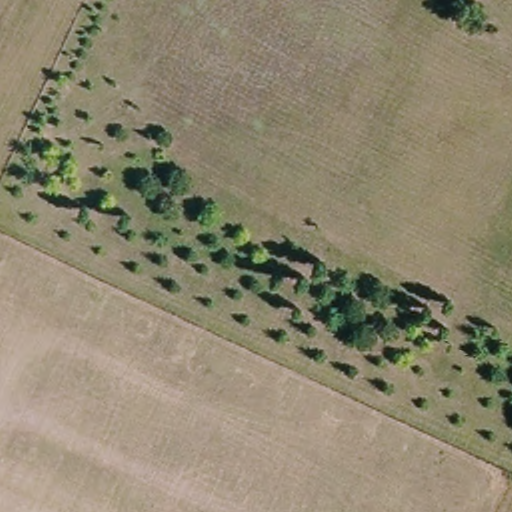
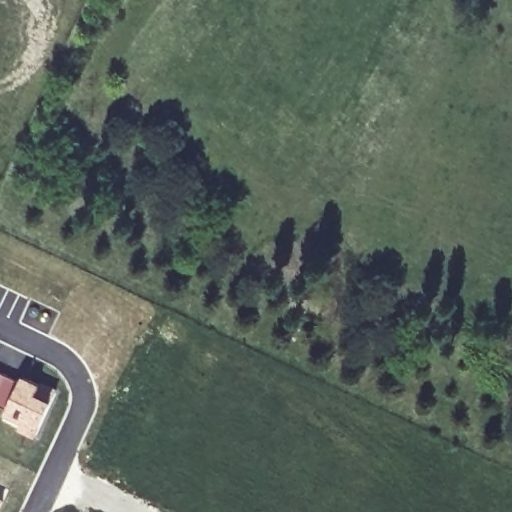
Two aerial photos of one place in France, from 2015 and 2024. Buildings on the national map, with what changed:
new [(0,402),(0,369),(20,379),(24,372),(44,381),(40,390),(54,396),(36,435),(18,425),(21,419),(6,411),(9,407),(7,406),(0,402)]
new [(0,510),(0,495),(6,497),(0,510)]

